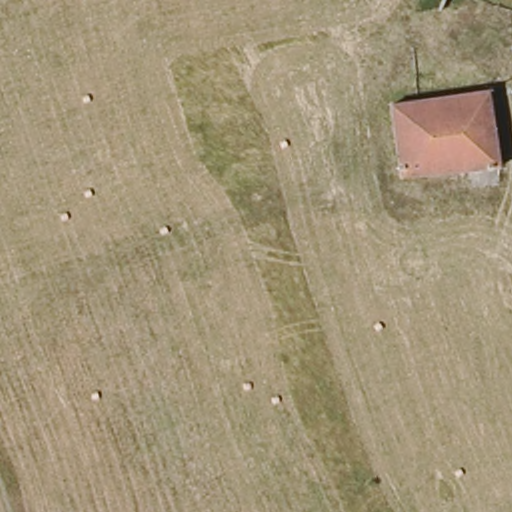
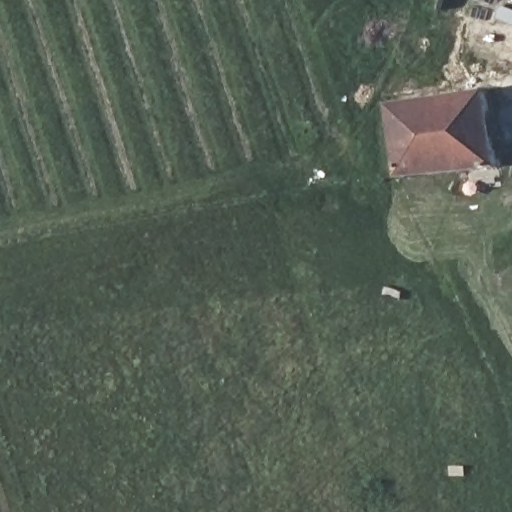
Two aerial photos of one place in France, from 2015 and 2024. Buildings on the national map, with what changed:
unchanged [(500,166),(404,174),(396,109),(490,95),(500,166)]

